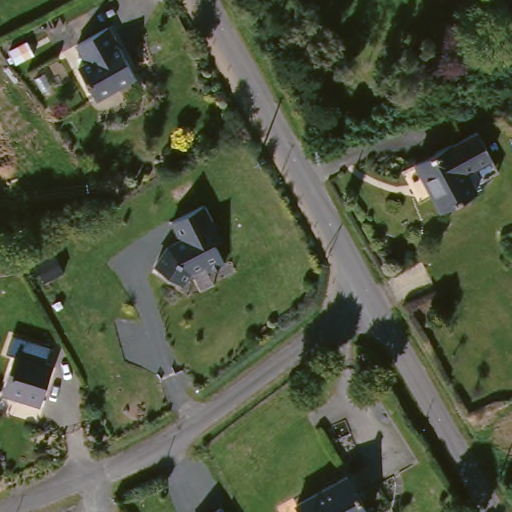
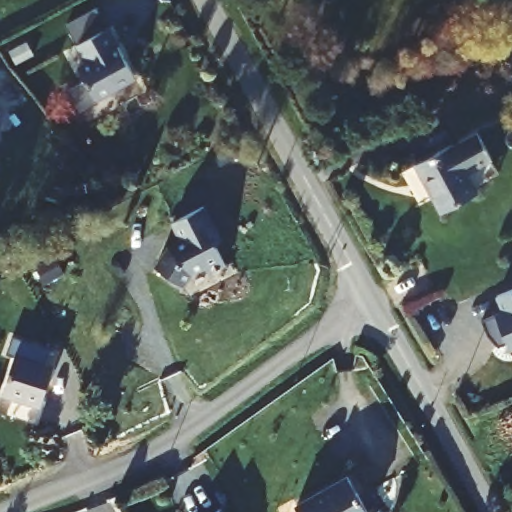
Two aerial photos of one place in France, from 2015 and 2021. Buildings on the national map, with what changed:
unchanged [(108,26),(135,73),(119,82),(120,84),(95,97),(78,65),(86,60),(76,43),(108,26)]
unchanged [(425,185),(447,174),(438,153),(475,136),(496,184),(459,200),(437,211),(425,185)]
unchanged [(197,206),(218,239),(212,243),(224,262),(207,272),(204,265),(191,273),(184,287),(155,271),(165,257),(163,256),(170,247),(179,243),(167,225),(197,206)]
new [(501,313),(496,297),(512,291),(512,355),(505,341),(498,345),(491,333),(486,335),(481,322),(501,313)]
unchanged [(0,391),(17,354),(52,367),(42,404),(0,396),(0,391)]
unchanged [(347,477),(366,512),(301,512),(297,505),(347,477)]
unchanged [(223,512),(220,512),(222,510),(223,512)]

